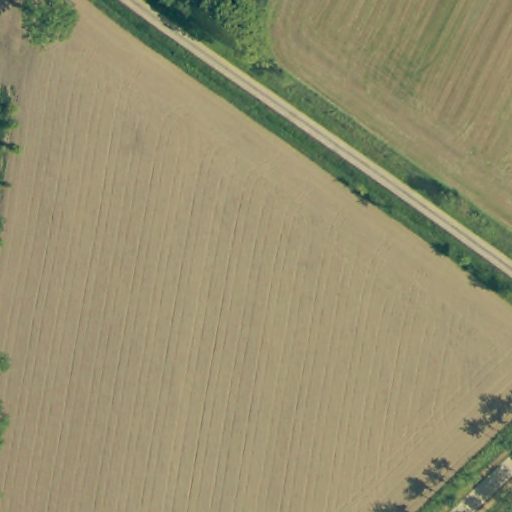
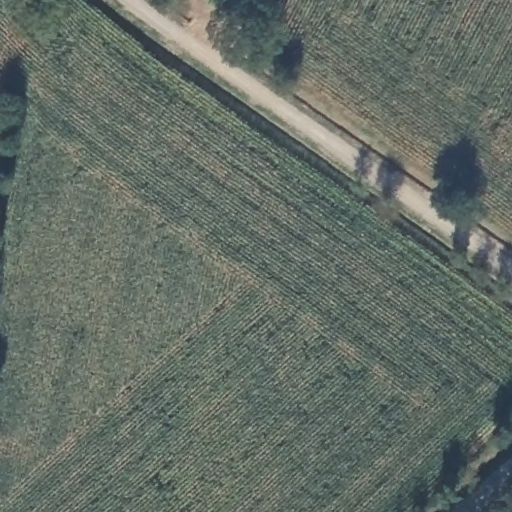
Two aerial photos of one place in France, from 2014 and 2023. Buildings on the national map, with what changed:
[]

